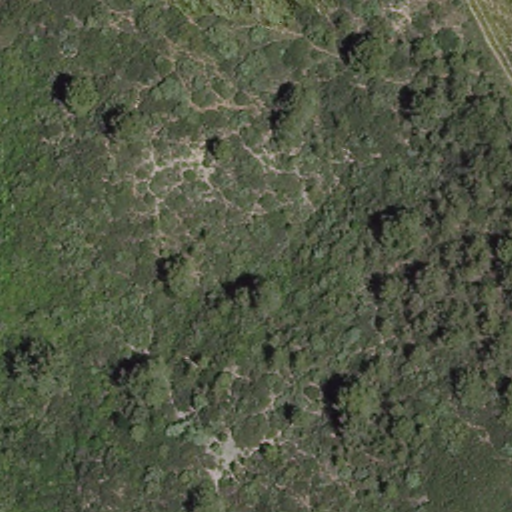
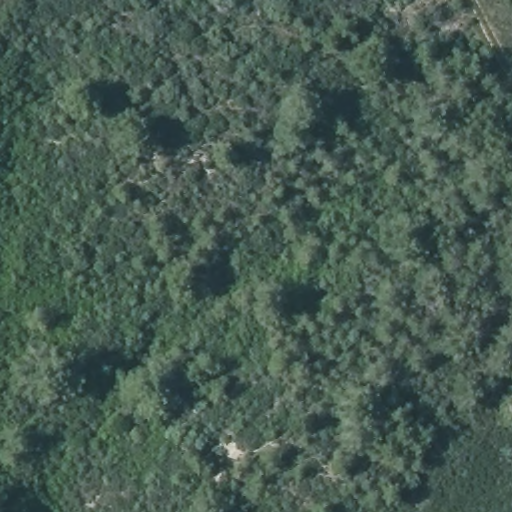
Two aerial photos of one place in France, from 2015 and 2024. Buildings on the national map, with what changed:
[]

